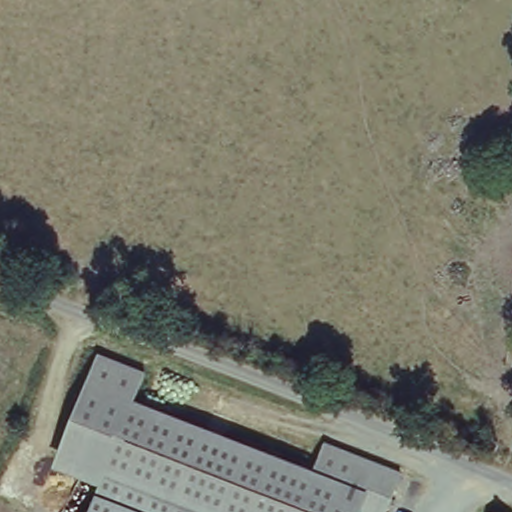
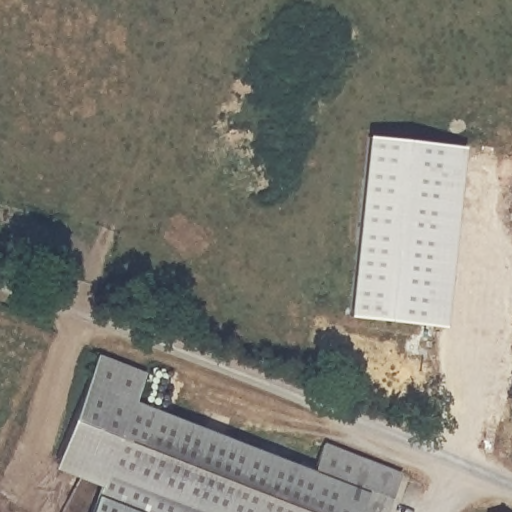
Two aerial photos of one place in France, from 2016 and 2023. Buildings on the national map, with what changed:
new [(468,149),(447,332),(348,321),(368,139),(468,149)]
unchanged [(136,399),(317,470),(329,442),(407,473),(390,512),(366,512),(365,512),(142,512),(78,487),(85,467),(58,457),(97,352),(145,372),(136,399)]
unchanged [(91,512),(98,495),(142,512),(91,512)]

